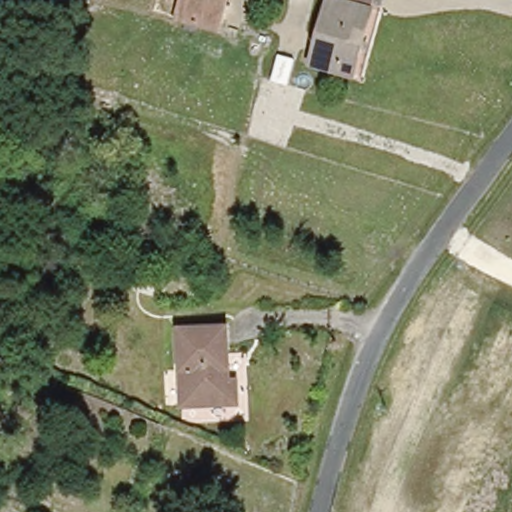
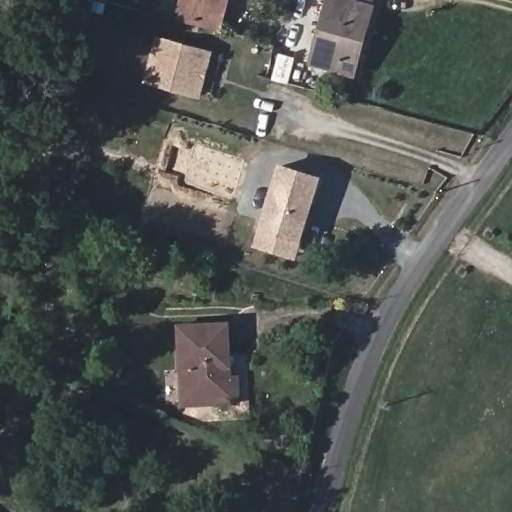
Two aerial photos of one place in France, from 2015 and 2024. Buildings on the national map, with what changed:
unchanged [(160,9),(163,0),(235,0),(235,2),(226,29),(160,9)]
unchanged [(315,50),(329,0),(377,0),(360,63),(315,50)]
new [(200,99),(143,83),(155,36),(213,51),(200,99)]
unchanged [(292,70),(275,66),(283,41),(300,45),(292,70)]
new [(323,177),(302,242),(295,259),(287,257),(252,246),(258,229),(278,163),(323,177)]
unchanged [(236,409),(180,412),(181,325),(235,320),(236,409)]

